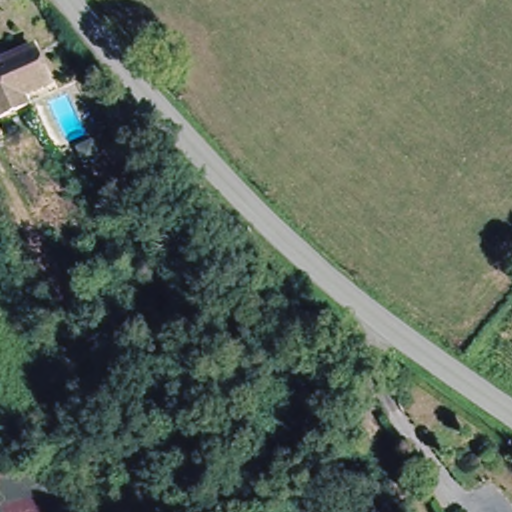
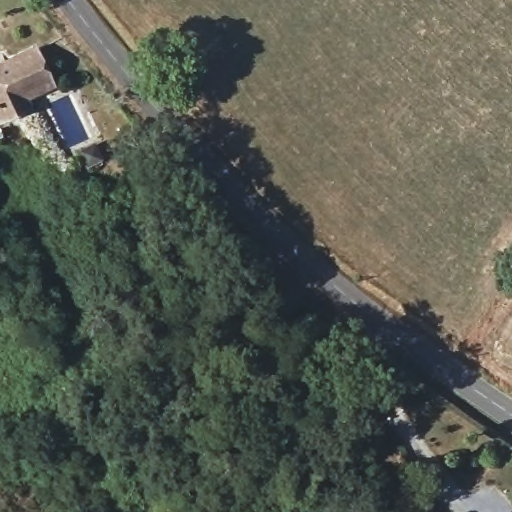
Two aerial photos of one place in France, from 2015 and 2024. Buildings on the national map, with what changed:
unchanged [(0,120),(0,62),(30,47),(53,92),(29,105),(33,116),(5,130),(0,120)]

